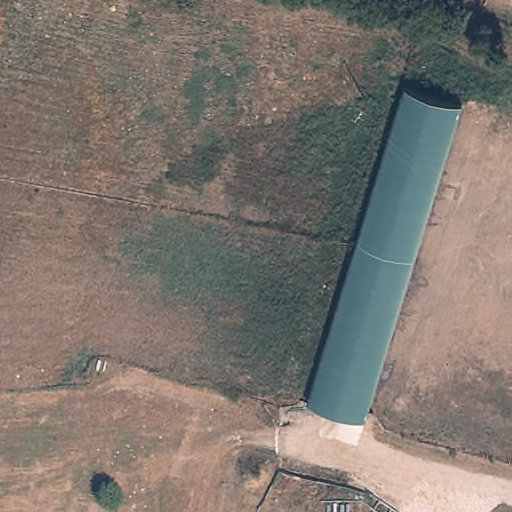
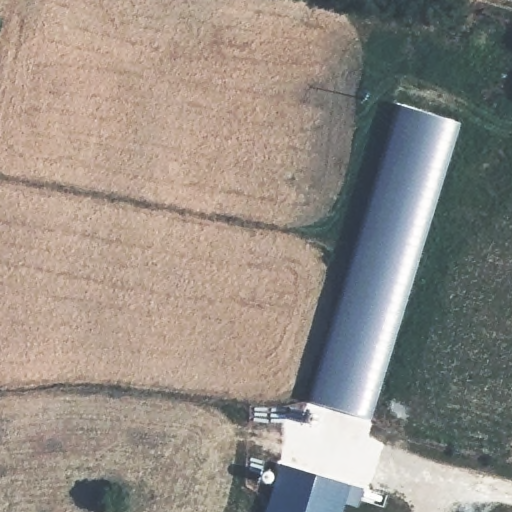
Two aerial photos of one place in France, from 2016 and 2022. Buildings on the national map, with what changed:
unchanged [(306,401),(402,86),(461,103),(363,418),(306,401)]
new [(364,486),(359,506),(346,503),(343,512),(267,512),(282,461),(364,486)]

